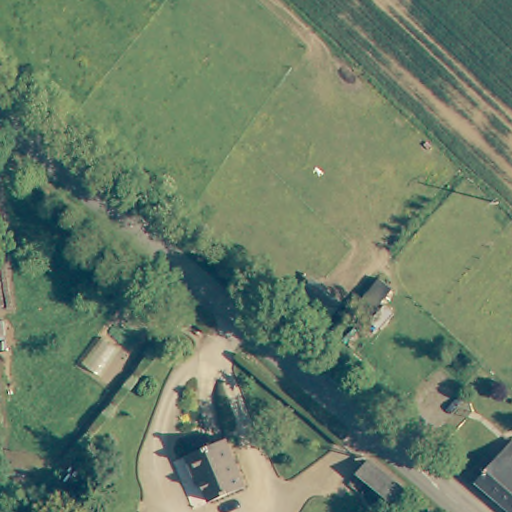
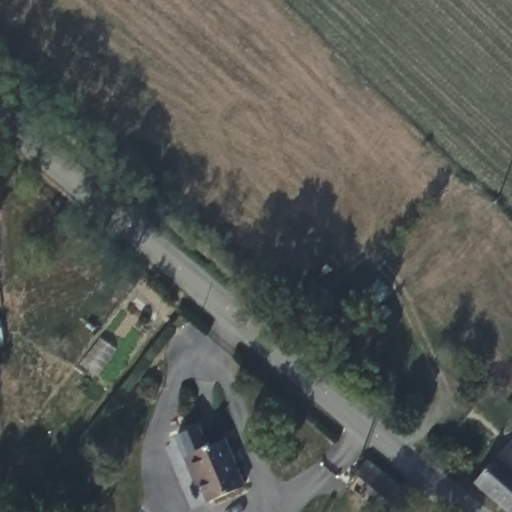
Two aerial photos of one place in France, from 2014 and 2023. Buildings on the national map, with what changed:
unchanged [(386,288),(362,318),(350,308),(373,279),(386,288)]
unchanged [(331,311),(322,322),(299,303),(308,292),(331,311)]
unchanged [(184,455),(222,438),(242,485),(207,500),(199,481),(195,483),(191,474),(184,455)]
unchanged [(497,456),(511,442),(512,443),(512,512),(506,512),(472,483),(497,456)]
unchanged [(405,493),(393,506),(357,475),(369,463),(405,493)]

